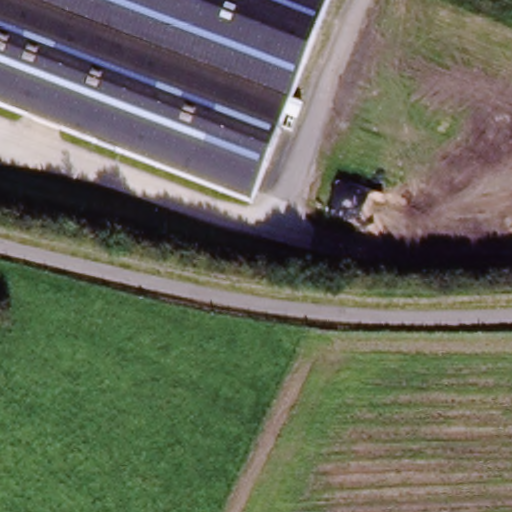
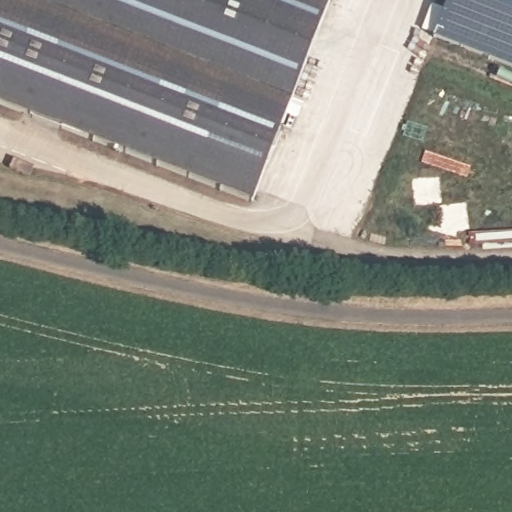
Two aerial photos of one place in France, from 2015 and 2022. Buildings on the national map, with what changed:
unchanged [(247,204),(0,106),(0,0),(319,0),(325,2),(247,204)]
unchanged [(319,0),(326,0),(325,2),(319,0)]
new [(435,35),(448,0),(512,0),(512,65),(435,35)]

